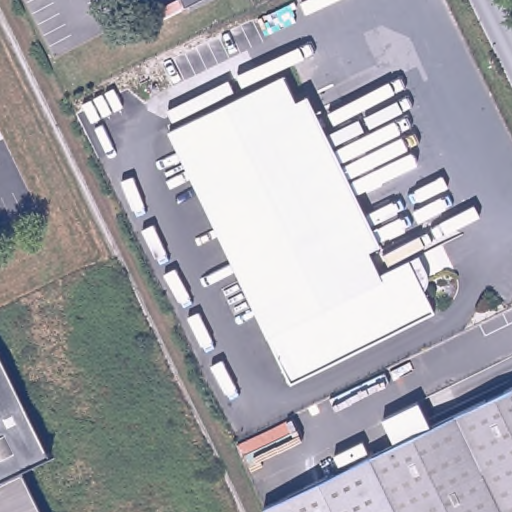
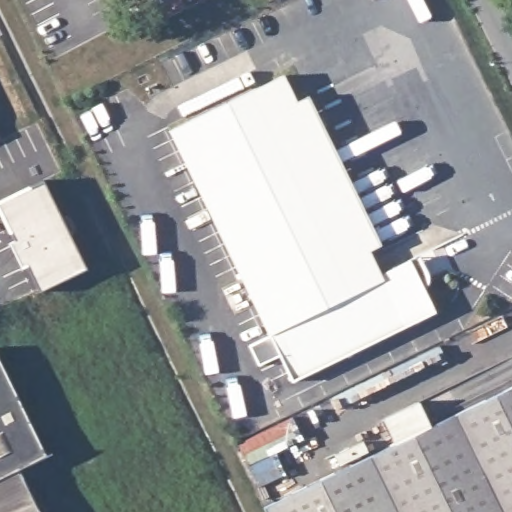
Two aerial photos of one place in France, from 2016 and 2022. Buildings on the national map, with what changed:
unchanged [(186,0),(202,0),(190,6),(186,0)]
unchanged [(380,276),(407,265),(418,284),(435,293),(445,313),(296,381),(169,129),(282,77),(295,102),(369,254),(380,276)]
unchanged [(295,102),(307,98),(381,249),(369,254),(295,102)]
new [(14,238),(12,234),(9,235),(0,217),(0,199),(31,184),(32,186),(42,181),(84,267),(38,290),(27,267),(21,270),(7,242),(14,238)]
unchanged [(0,457),(0,362),(37,440),(0,457)]
unchanged [(512,512),(272,512),(268,505),(512,390),(512,512)]
unchanged [(50,466),(30,475),(47,512),(0,512),(0,457),(37,440),(50,466)]

